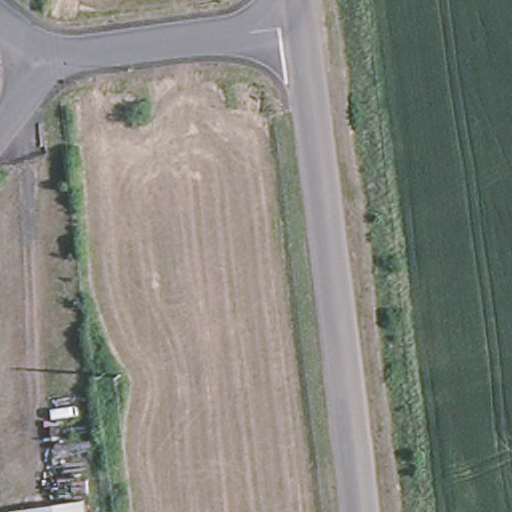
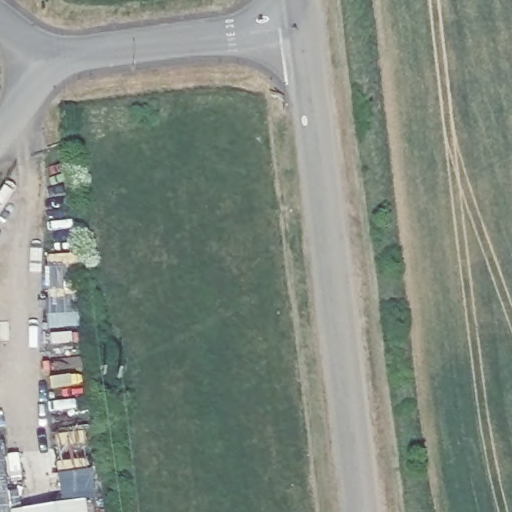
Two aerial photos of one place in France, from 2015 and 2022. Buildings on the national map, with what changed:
unchanged [(85,500),(87,512),(14,512),(14,510),(85,500)]

